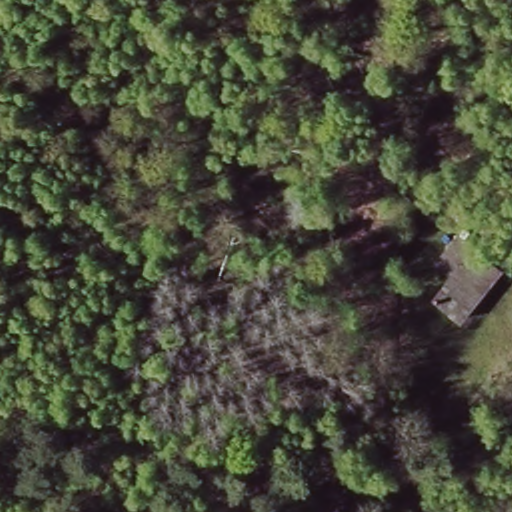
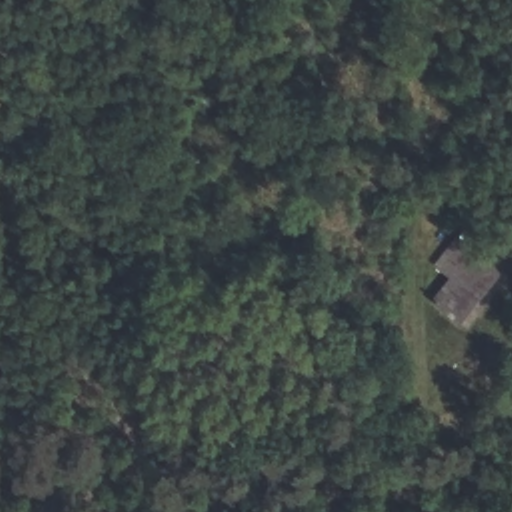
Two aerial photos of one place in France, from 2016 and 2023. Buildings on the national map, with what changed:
unchanged [(428,302),(445,280),(430,266),(457,230),(503,270),(461,327),(428,302)]

